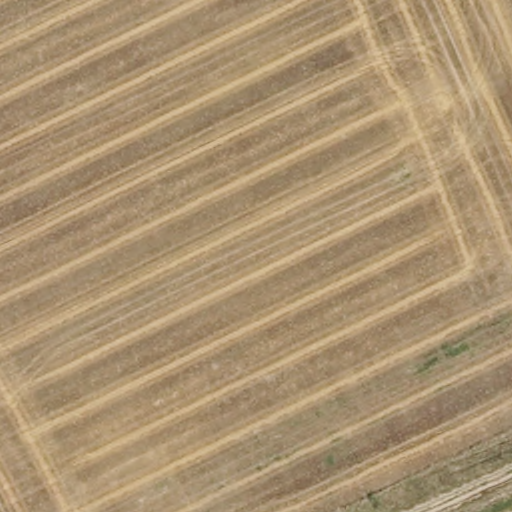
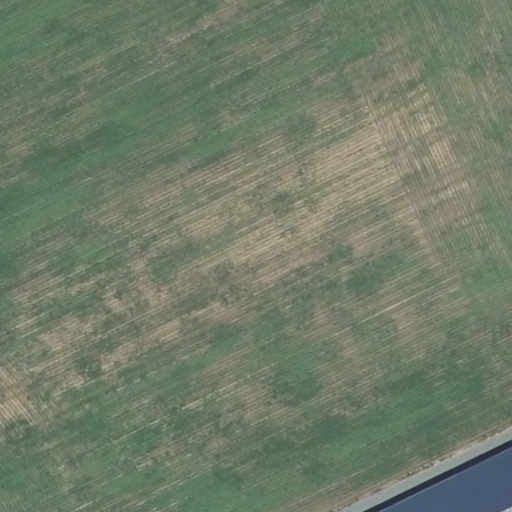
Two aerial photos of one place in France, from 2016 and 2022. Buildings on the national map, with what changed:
new [(512,512),(378,512),(512,447),(512,512)]

